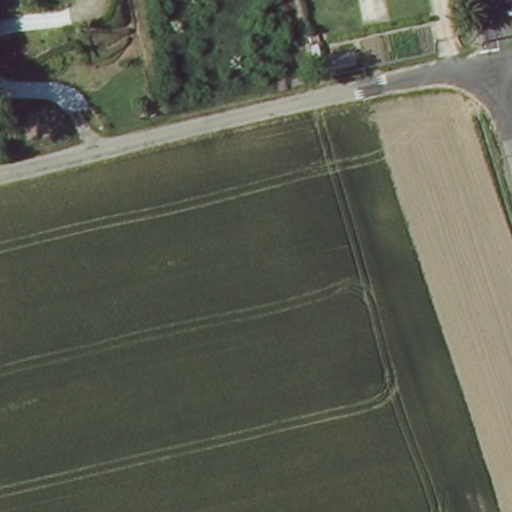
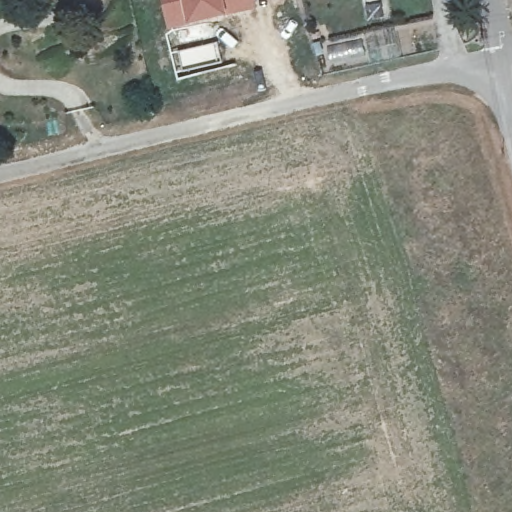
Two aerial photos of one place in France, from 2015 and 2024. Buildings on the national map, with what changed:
new [(190,25),(170,30),(162,0),(254,0),(256,10),(226,17),(190,25)]

